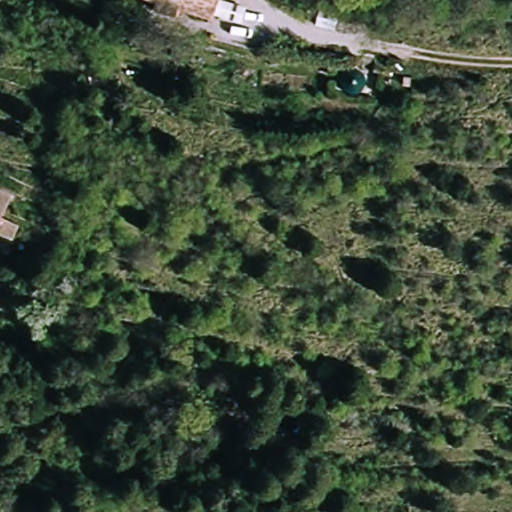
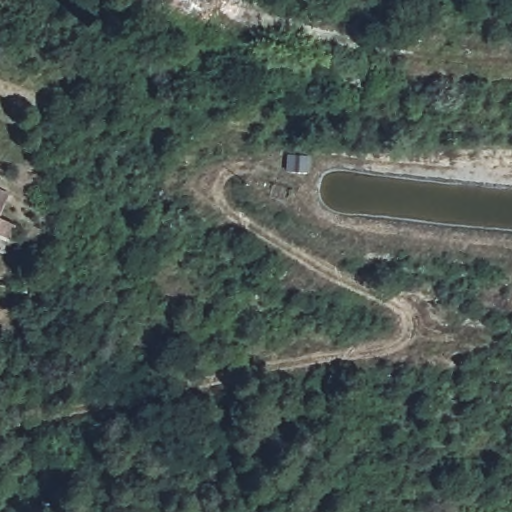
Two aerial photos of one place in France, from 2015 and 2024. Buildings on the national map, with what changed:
unchanged [(206,18),(177,9),(174,19),(154,13),(158,2),(151,0),(211,0),(206,18)]
unchanged [(0,207),(0,193),(5,195),(0,207)]

